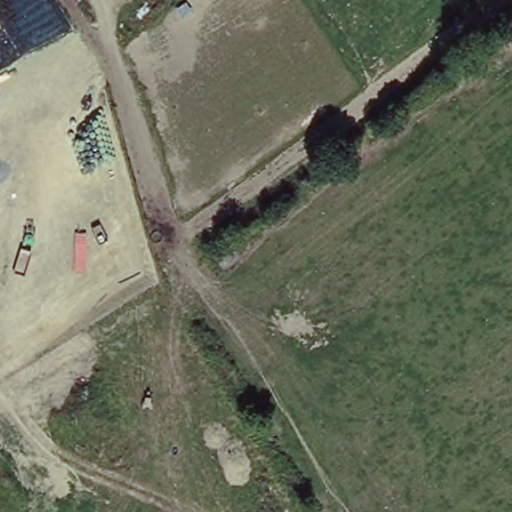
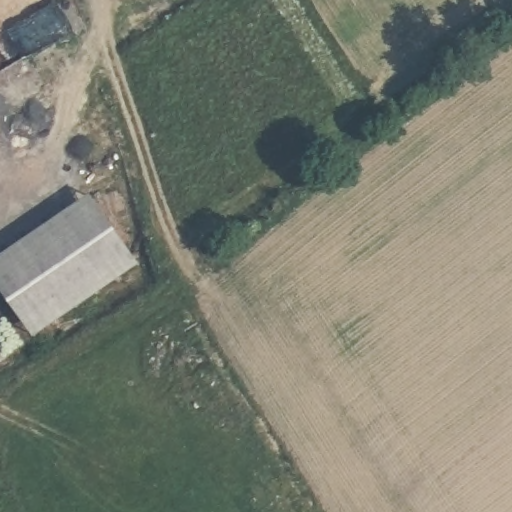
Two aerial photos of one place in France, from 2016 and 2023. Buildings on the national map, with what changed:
new [(142,258),(42,333),(0,276),(0,254),(92,192),(142,258)]

